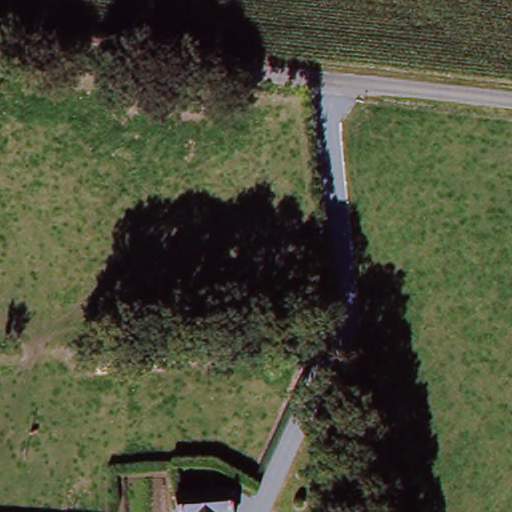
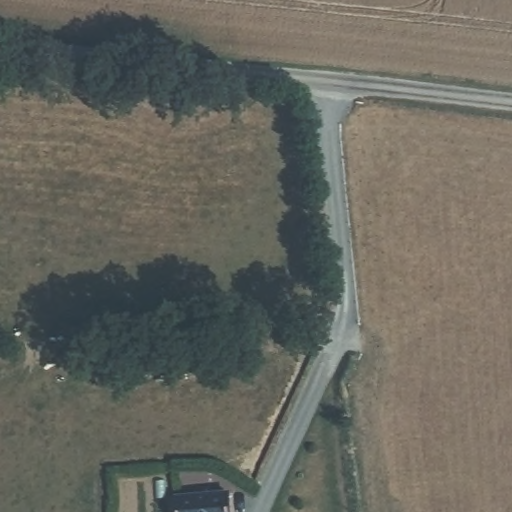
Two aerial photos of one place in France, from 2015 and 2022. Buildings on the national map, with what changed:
unchanged [(181,493),(231,499),(229,512),(177,512),(181,493)]

